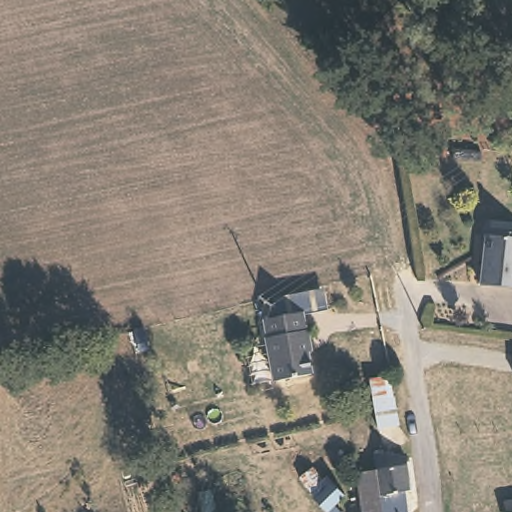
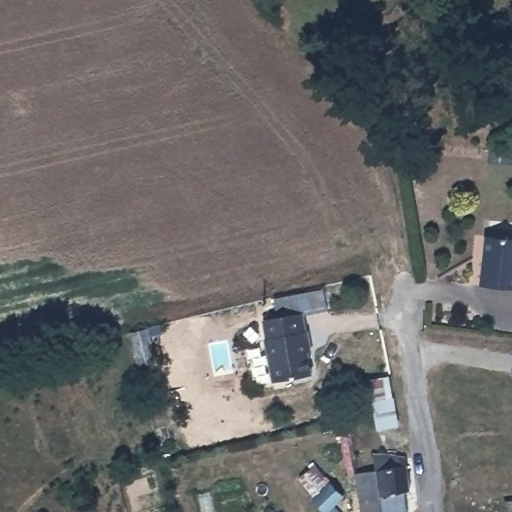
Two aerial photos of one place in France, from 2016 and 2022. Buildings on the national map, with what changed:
unchanged [(476,232),(512,235),(512,282),(471,280),(476,232)]
unchanged [(273,368),(267,332),(269,332),(266,313),(305,307),(308,326),(310,326),(311,336),(313,347),(310,347),(312,370),(280,374),(275,375),(273,368)]
unchanged [(387,378),(396,424),(378,427),(370,382),(387,378)]
unchanged [(375,466),(373,453),(405,452),(412,486),(406,487),(410,508),(395,512),(363,512),(355,471),(375,466)]
unchanged [(335,493),(329,503),(337,511),(336,512),(325,512),(308,501),(320,483),(335,493)]
unchanged [(512,512),(506,512),(503,498),(512,496),(512,512)]

